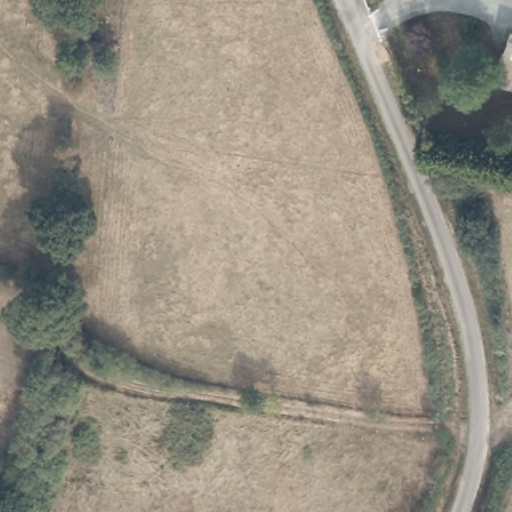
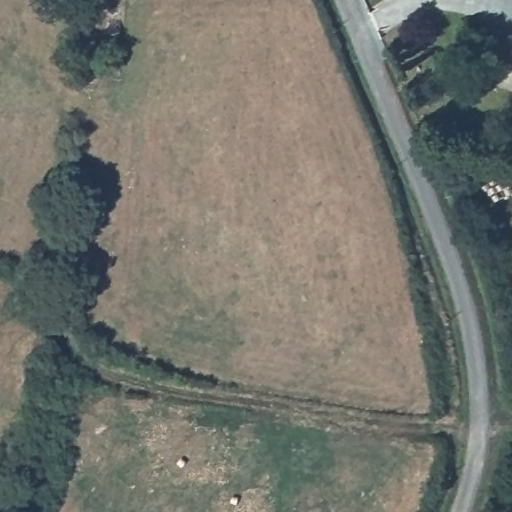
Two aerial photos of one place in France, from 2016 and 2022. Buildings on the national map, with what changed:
unchanged [(506,27),(512,31),(512,88),(481,71),(506,27)]

